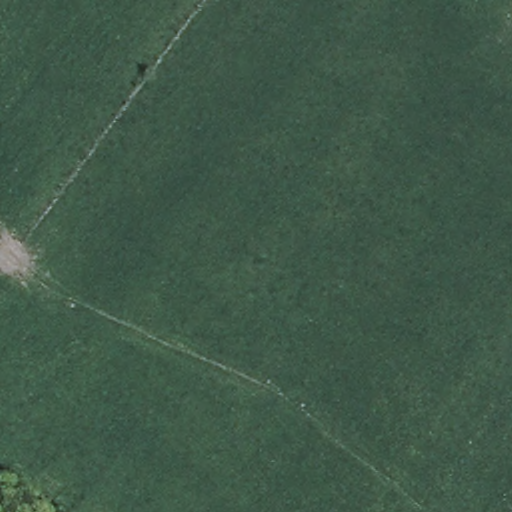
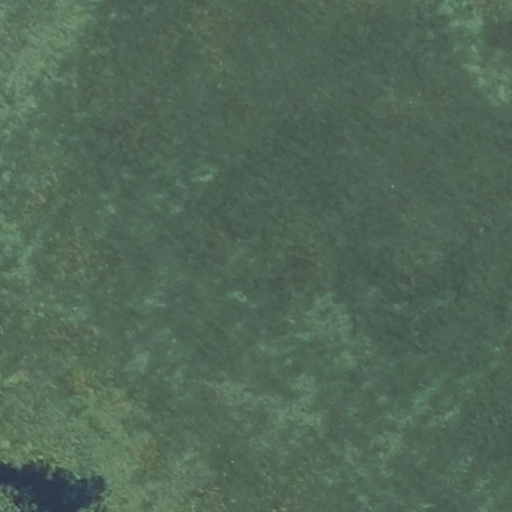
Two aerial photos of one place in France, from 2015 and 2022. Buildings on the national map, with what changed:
[]

